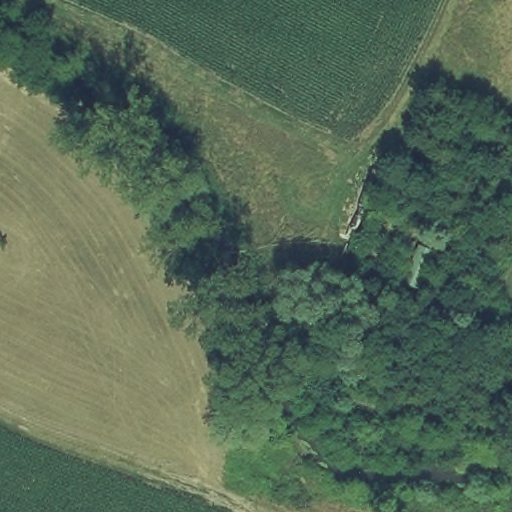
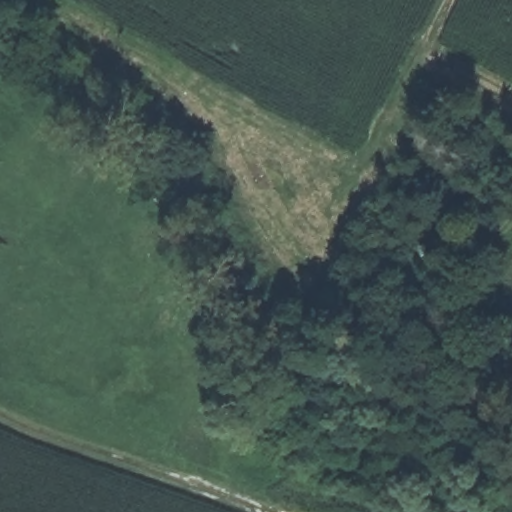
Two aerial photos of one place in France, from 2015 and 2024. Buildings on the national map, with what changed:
unchanged [(439,249),(421,293),(399,283),(418,242),(439,249)]

